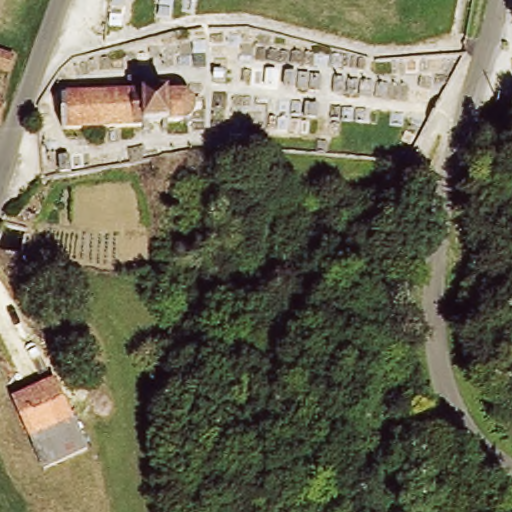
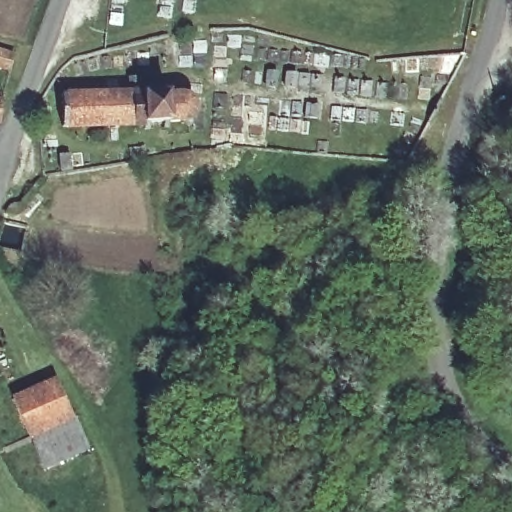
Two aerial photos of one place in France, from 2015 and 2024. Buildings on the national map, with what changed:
unchanged [(60,98),(160,83),(160,76),(182,73),(185,91),(200,90),(203,115),(65,133),(60,98)]
unchanged [(0,121),(0,97),(3,97),(0,121)]
unchanged [(94,444),(68,454),(40,463),(31,444),(14,397),(64,377),(94,444)]

